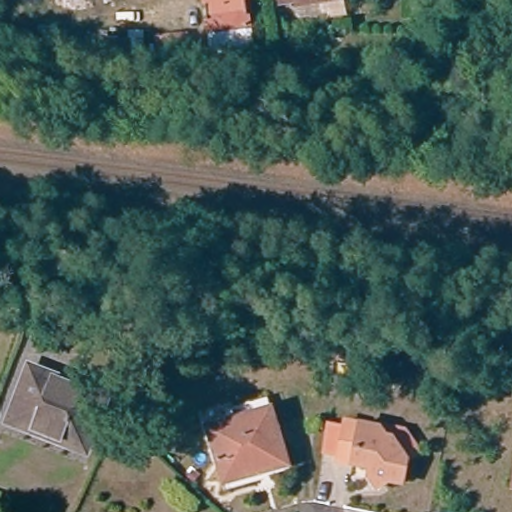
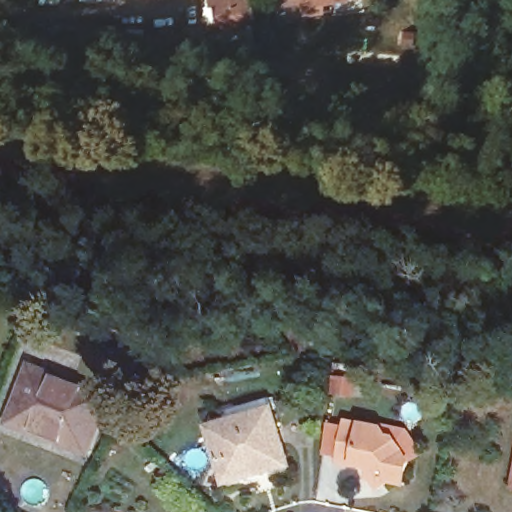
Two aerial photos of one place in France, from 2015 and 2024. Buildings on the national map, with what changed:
unchanged [(214,25),(211,0),(250,0),(253,20),(214,25)]
unchanged [(285,0),(293,0),(285,1),(285,0)]
unchanged [(304,0),(315,0),(304,1),(304,0)]
unchanged [(193,56),(166,60),(164,42),(163,35),(189,31),(192,45),(193,56)]
unchanged [(257,80),(258,65),(277,67),(299,70),(298,85),(279,84),(257,80)]
unchanged [(29,370),(80,387),(103,395),(99,405),(84,449),(10,424),(29,370)]
unchanged [(273,400),(292,467),(231,485),(212,416),(273,400)]
unchanged [(354,414),(388,422),(396,431),(418,437),(409,481),(391,476),(383,480),(376,472),(379,460),(346,453),(354,414)]

